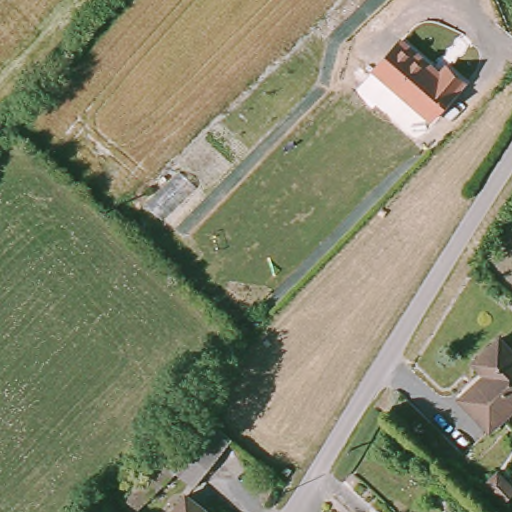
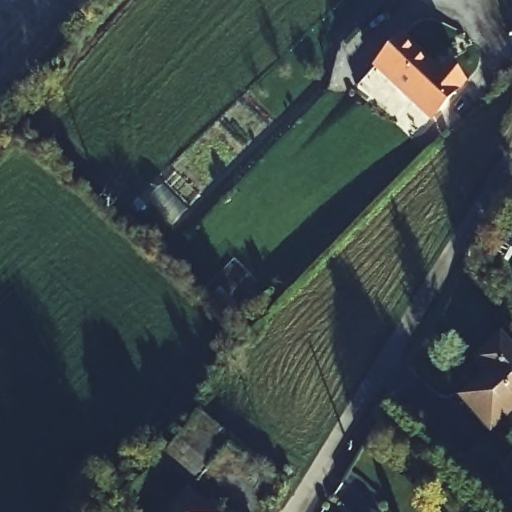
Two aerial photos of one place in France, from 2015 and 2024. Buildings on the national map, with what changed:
unchanged [(400,36),(441,69),(447,61),(465,77),(433,116),(374,66),(400,36)]
unchanged [(458,401),(483,377),(490,370),(479,356),(496,340),(512,357),(512,411),(489,433),(458,401)]
unchanged [(144,465),(190,407),(224,434),(183,489),(164,475),(161,479),(144,465)]
unchanged [(132,512),(111,512),(109,510),(144,465),(161,479),(132,512)]
unchanged [(205,512),(171,512),(183,495),(205,512)]

